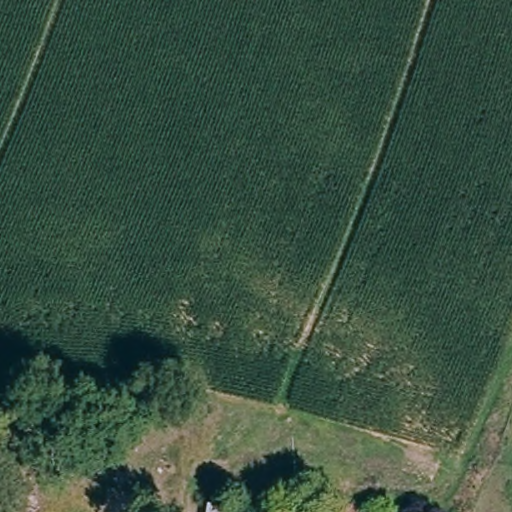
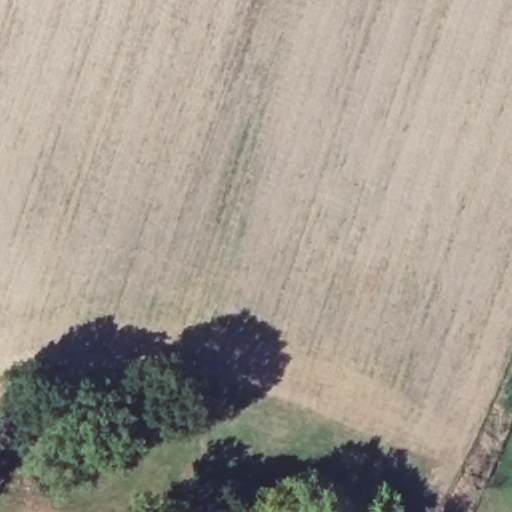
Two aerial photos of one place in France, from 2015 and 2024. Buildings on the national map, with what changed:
unchanged [(260,512),(208,512),(209,503),(261,508),(260,512)]
unchanged [(373,512),(376,503),(404,512),(373,512)]

